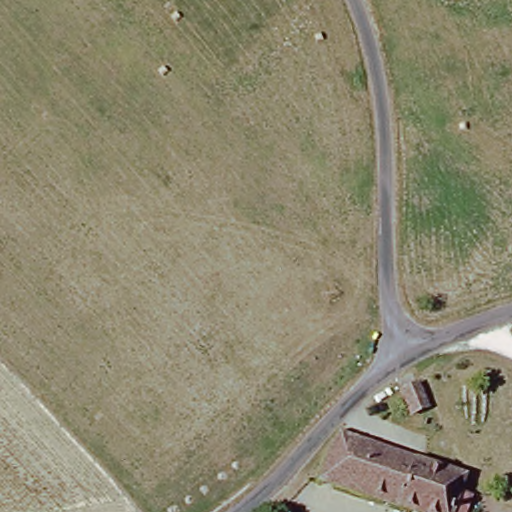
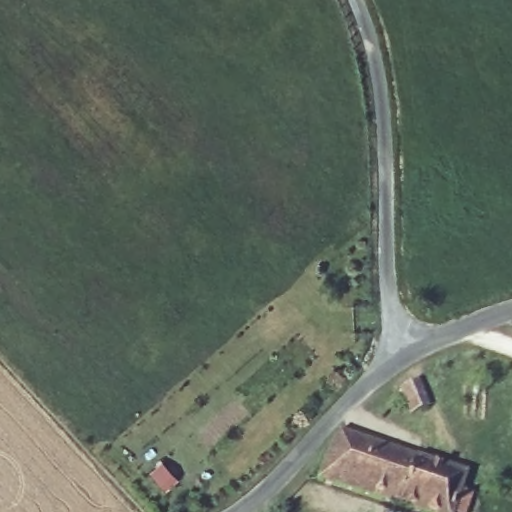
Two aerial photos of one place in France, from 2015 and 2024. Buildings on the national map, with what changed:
unchanged [(407,390),(423,386),(432,408),(415,414),(407,390)]
unchanged [(323,485),(341,436),(468,480),(465,495),(477,500),(472,512),(406,512),(323,485)]

